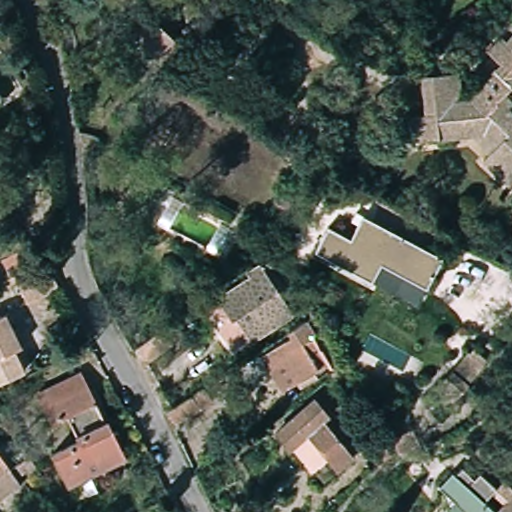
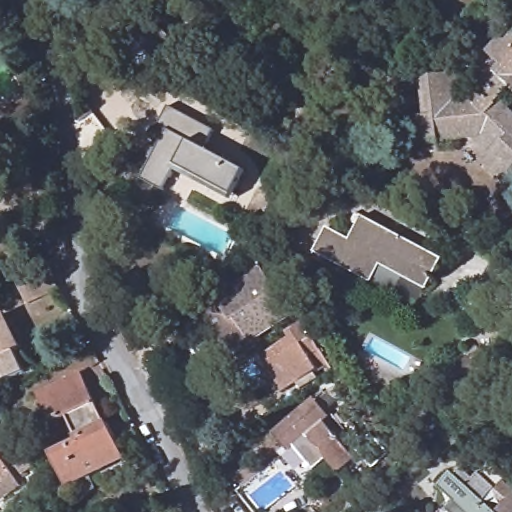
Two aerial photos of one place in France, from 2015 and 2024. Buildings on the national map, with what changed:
unchanged [(44,0),(46,0),(45,1),(44,0)]
unchanged [(148,14),(166,29),(158,37),(170,46),(155,66),(125,39),(148,14)]
unchanged [(512,105),(508,109),(512,112),(512,184),(507,189),(478,161),(486,154),(470,139),(411,141),(410,116),(421,116),(420,79),(457,77),(458,95),(455,95),(455,102),(466,101),(478,89),(482,85),(491,75),(500,66),(485,51),(501,34),(506,38),(512,32),(512,90),(510,89),(505,95),(503,96),(512,105)]
new [(151,161),(148,159),(165,129),(158,126),(169,106),(214,131),(201,149),(246,172),(231,202),(173,171),(163,192),(140,180),(151,161)]
unchanged [(440,262),(426,289),(380,265),(371,281),(315,253),(327,229),(350,241),(361,221),(440,262)]
unchanged [(266,275),(259,282),(282,313),(240,345),(226,325),(235,320),(217,299),(263,265),(266,275)]
new [(370,284),(371,281),(380,265),(426,289),(416,308),(370,284)]
unchanged [(26,307),(17,290),(10,275),(27,267),(35,283),(55,274),(62,287),(26,307)]
unchanged [(0,384),(0,320),(16,351),(10,354),(21,374),(0,384)]
unchanged [(136,350),(160,334),(173,327),(182,341),(171,348),(143,366),(136,350)]
unchanged [(277,377),(265,362),(293,343),(290,337),(302,329),(330,367),(308,385),(292,397),(277,377)]
unchanged [(83,374),(125,461),(74,488),(58,456),(80,443),(65,416),(48,425),(36,396),(83,374)]
unchanged [(190,395),(201,412),(177,430),(167,411),(190,395)]
unchanged [(291,451),(287,455),(271,433),(315,400),(330,420),(323,422),(350,458),(335,471),(321,454),(303,466),(291,451)]
unchanged [(22,486),(0,502),(0,452),(22,486)]
unchanged [(454,506),(436,489),(447,476),(463,490),(473,478),(494,493),(481,506),(489,512),(448,512),(454,506)]
unchanged [(512,512),(496,512),(512,496),(512,512)]

